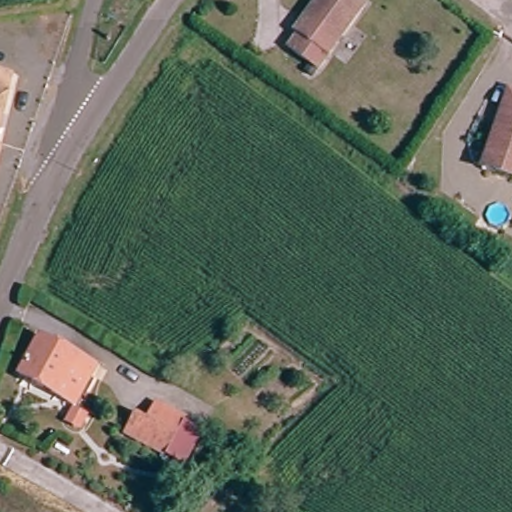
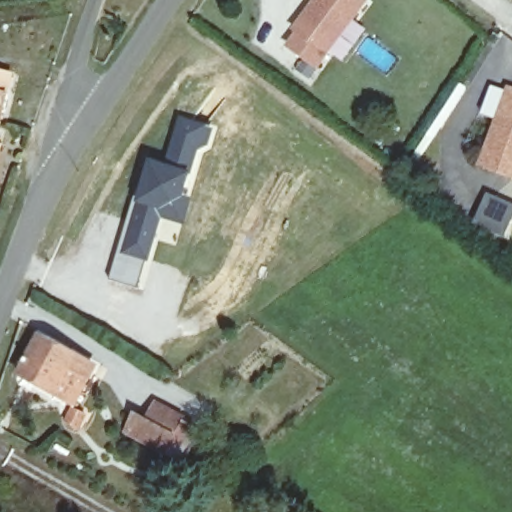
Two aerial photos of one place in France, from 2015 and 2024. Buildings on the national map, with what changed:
unchanged [(369,2),(321,66),(292,46),(304,30),(299,29),(310,12),(319,0),(366,0),(369,2)]
unchanged [(16,75),(0,149),(0,71),(16,75)]
unchanged [(509,85),(512,86),(512,172),(484,163),(509,85)]
new [(149,156),(162,161),(177,113),(215,126),(209,147),(200,152),(187,194),(194,197),(185,226),(163,219),(138,287),(111,278),(149,156)]
unchanged [(26,363),(40,336),(92,364),(71,400),(37,381),(21,372),(26,363)]
unchanged [(124,434),(135,414),(147,419),(158,402),(189,418),(204,401),(215,410),(185,469),(124,434)]

